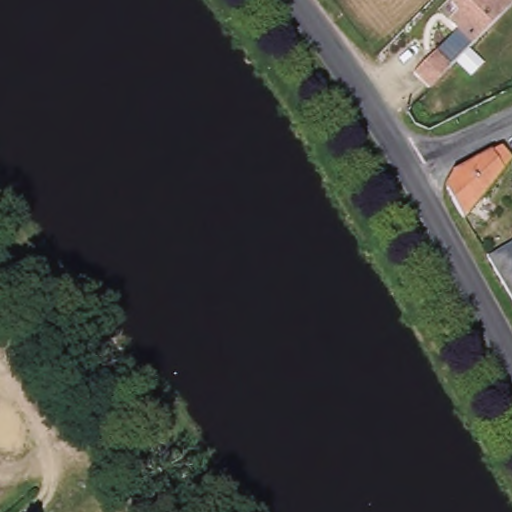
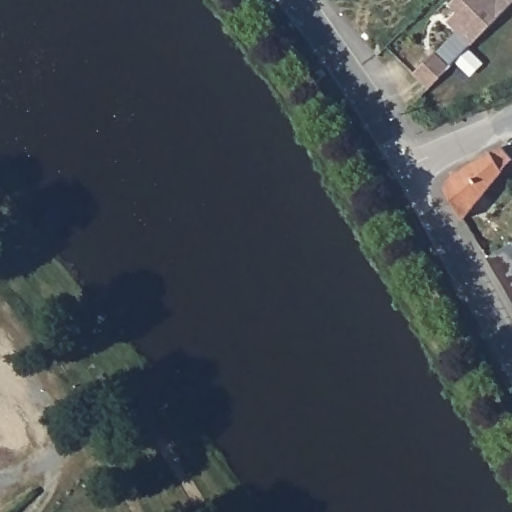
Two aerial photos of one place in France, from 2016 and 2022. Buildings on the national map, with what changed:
unchanged [(449,17),(459,7),(451,0),(512,0),(512,3),(473,41),(453,21),(449,17)]
unchanged [(412,70),(435,48),(450,64),(440,74),(427,86),(412,70)]
unchanged [(512,159),(512,163),(466,220),(448,187),(455,170),(500,147),(512,159)]
unchanged [(512,303),(485,256),(512,240),(512,303)]

